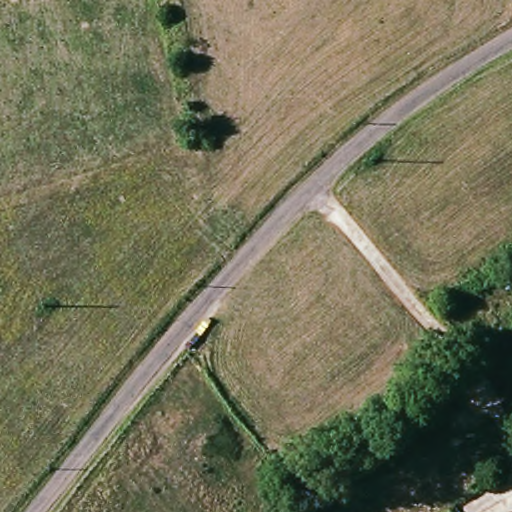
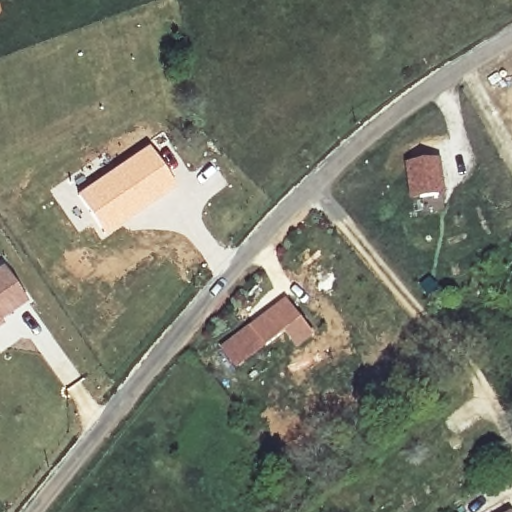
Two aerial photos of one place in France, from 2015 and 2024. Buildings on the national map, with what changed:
new [(147,144),(175,184),(105,233),(76,192),(147,144)]
new [(436,161),(440,195),(410,199),(405,166),(436,161)]
new [(24,299),(0,315),(0,267),(2,265),(24,299)]
unchanged [(510,274),(512,273),(512,279),(510,274)]
new [(249,329),(264,347),(235,370),(220,352),(249,329)]

